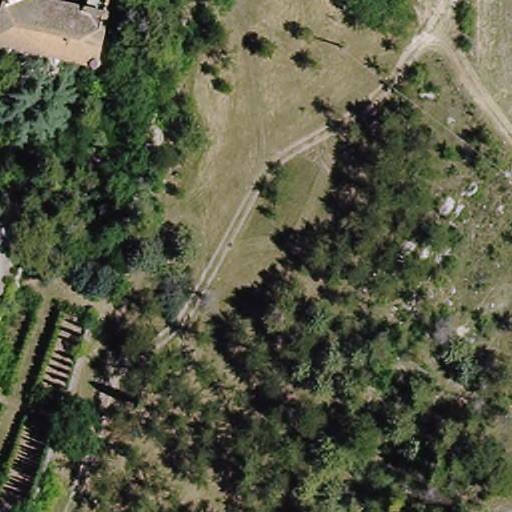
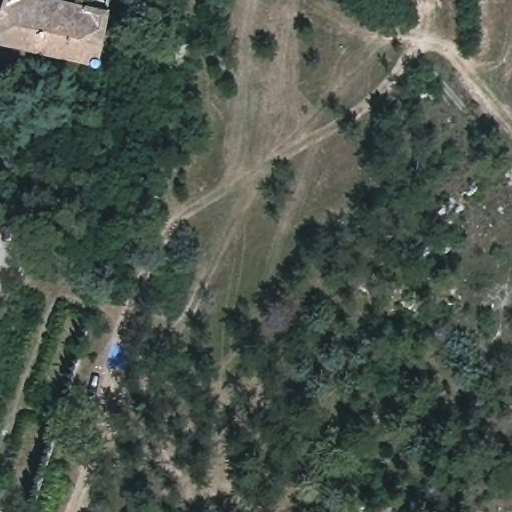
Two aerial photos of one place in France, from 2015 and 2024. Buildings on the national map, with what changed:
unchanged [(8,0),(70,0),(109,16),(101,64),(105,69),(100,70),(97,66),(5,27),(0,29),(0,19),(8,0)]

